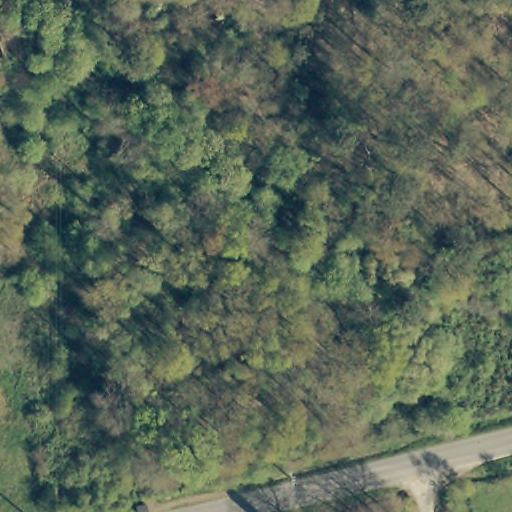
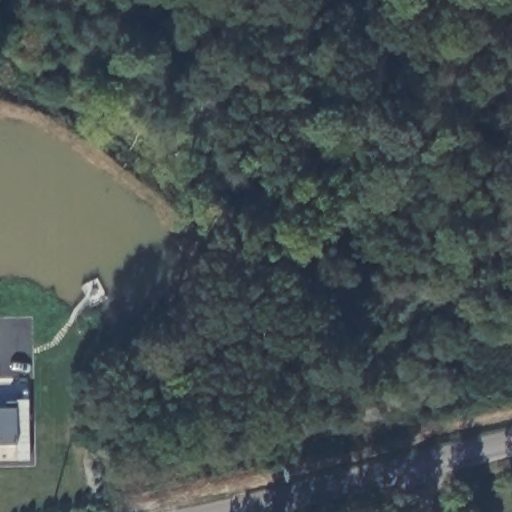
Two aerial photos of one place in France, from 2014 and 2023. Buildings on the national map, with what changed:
new [(6,399),(27,399),(29,459),(17,460),(16,444),(0,445),(0,408),(6,407),(6,399)]

